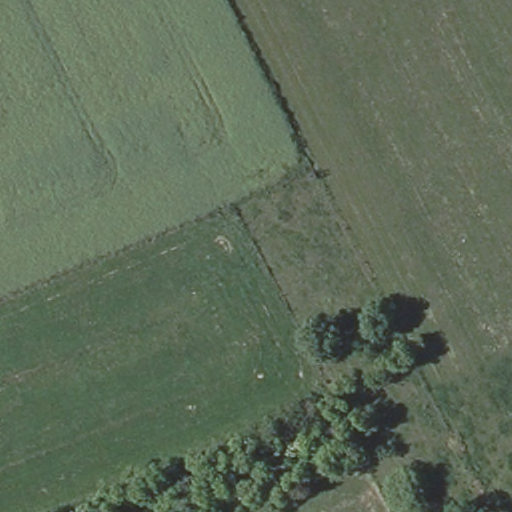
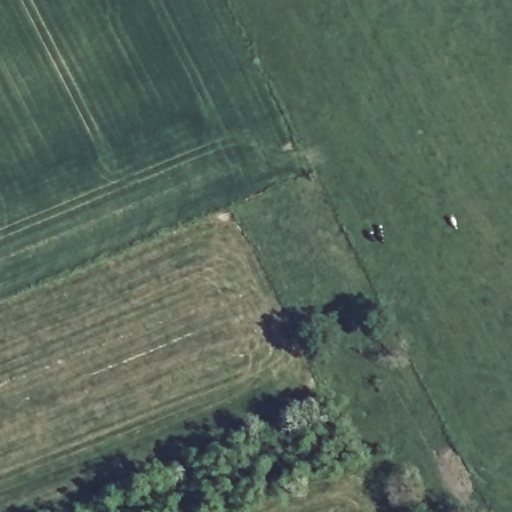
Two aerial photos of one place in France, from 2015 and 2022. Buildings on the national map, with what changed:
[]

